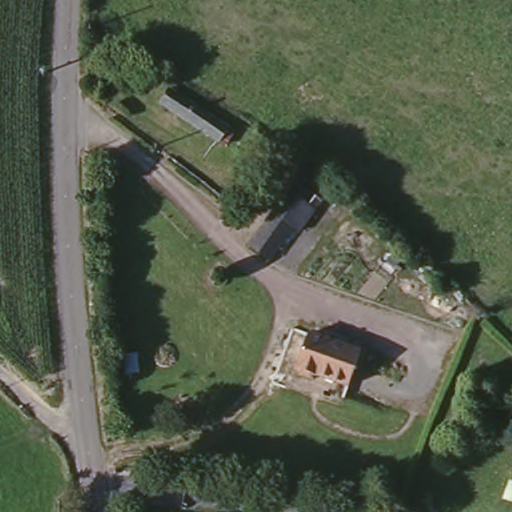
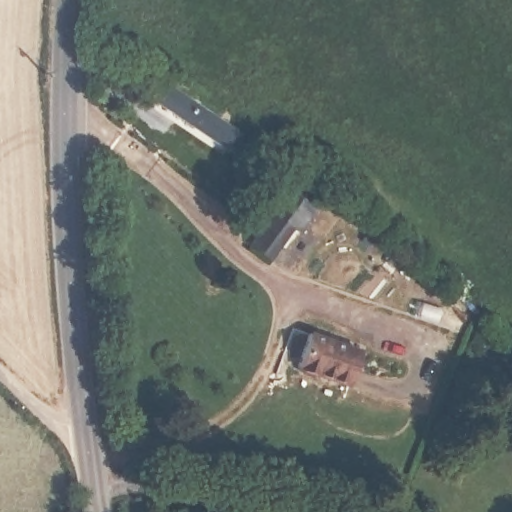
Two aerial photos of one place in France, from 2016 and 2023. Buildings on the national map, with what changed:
unchanged [(226,140),(164,97),(172,82),(236,125),(226,140)]
unchanged [(247,249),(261,231),(295,186),(321,205),(297,236),(291,233),(281,247),(268,265),(247,249)]
unchanged [(363,345),(351,378),(318,367),(313,369),(303,366),(301,361),(299,360),(310,327),(363,345)]

